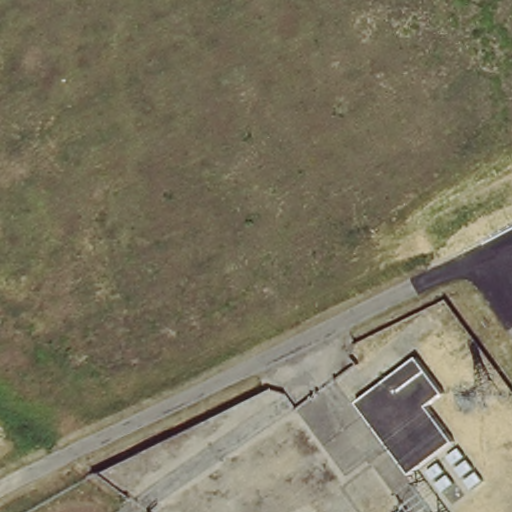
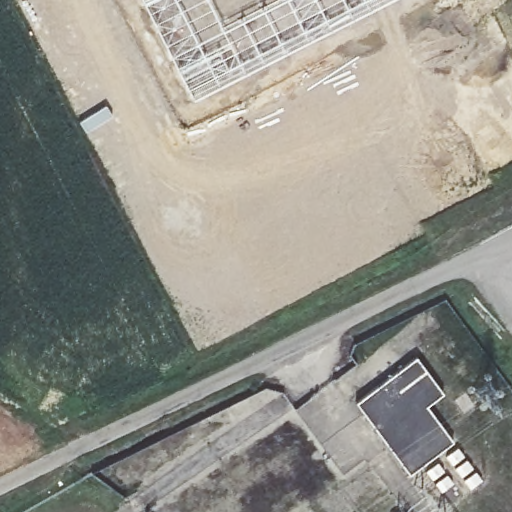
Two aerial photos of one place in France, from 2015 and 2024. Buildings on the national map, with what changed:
new [(178,75),(139,0),(393,0),(195,103),(178,75)]
unchanged [(455,445),(406,477),(386,448),(356,405),(412,364),(442,394),(423,407),(434,420),(455,445)]

